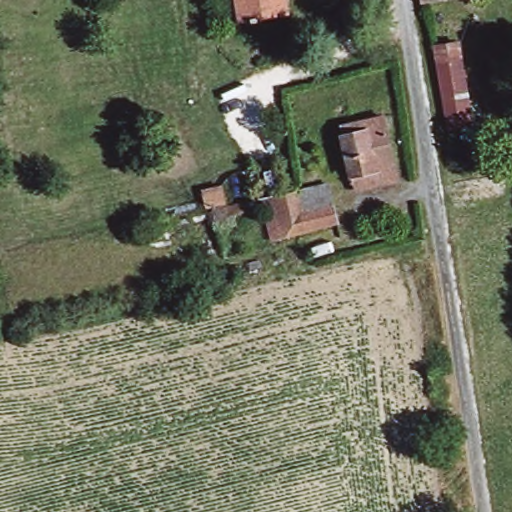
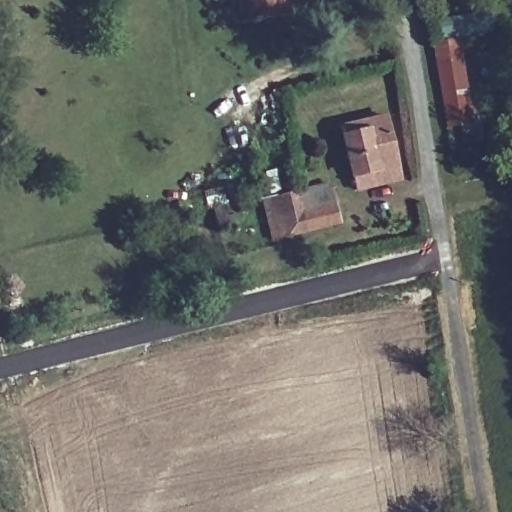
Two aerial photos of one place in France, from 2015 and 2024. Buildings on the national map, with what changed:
unchanged [(279,13),(241,18),(238,0),(291,0),(292,11),(279,13)]
unchanged [(446,26),(447,36),(458,37),(467,119),(443,123),(433,29),(446,26)]
unchanged [(383,118),(393,166),(351,175),(342,125),(383,118)]
unchanged [(327,217),(271,231),(261,195),(281,190),(286,205),(322,196),(327,217)]

